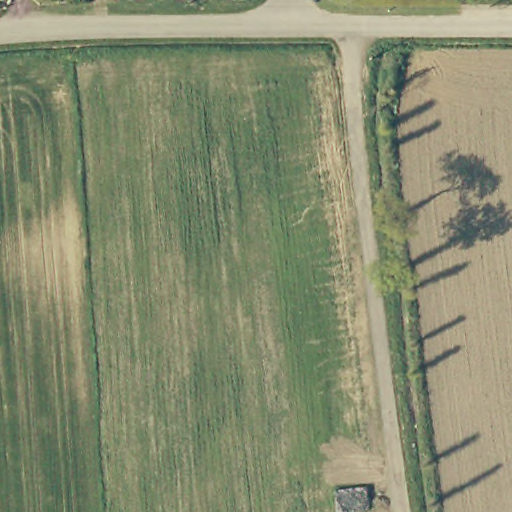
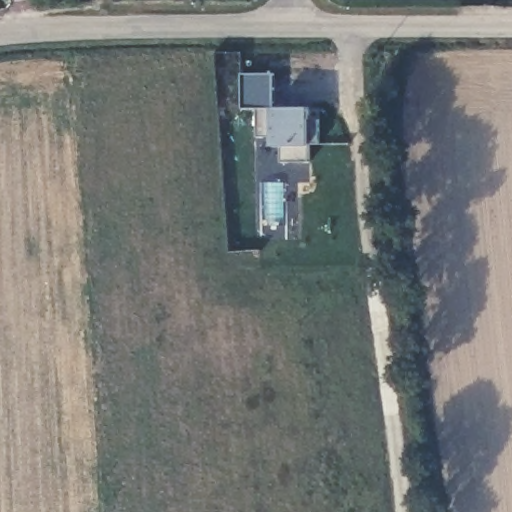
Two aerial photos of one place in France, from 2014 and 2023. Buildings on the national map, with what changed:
new [(273,75),(274,108),(310,107),(310,120),(318,120),(319,142),(310,143),(310,146),(309,161),(281,162),(281,145),(275,146),(275,136),(259,137),(259,109),(244,108),(243,75),(273,75)]

